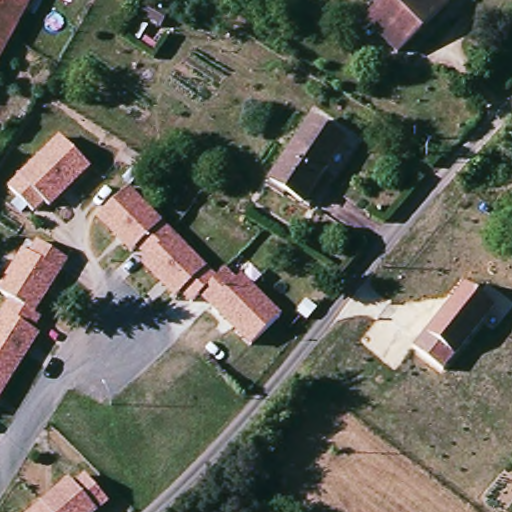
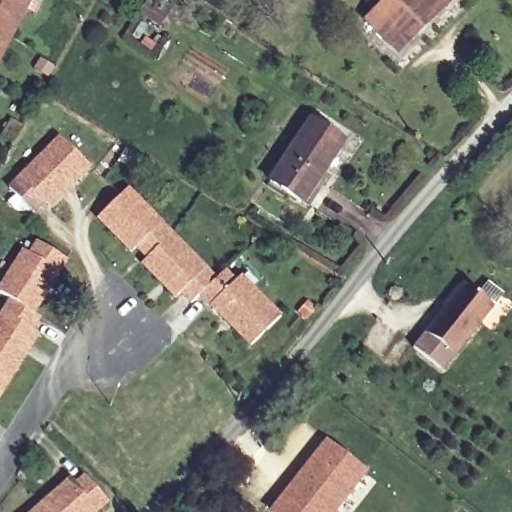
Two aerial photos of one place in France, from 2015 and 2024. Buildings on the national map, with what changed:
unchanged [(0,66),(0,0),(34,0),(0,66)]
unchanged [(368,21),(389,0),(460,0),(402,56),(368,21)]
unchanged [(277,179),(320,123),(350,145),(307,202),(277,179)]
unchanged [(56,137),(88,165),(46,210),(38,203),(31,210),(9,190),(56,137)]
unchanged [(132,252),(102,221),(133,189),(222,275),(230,268),(241,279),(247,272),(287,310),(257,343),(205,294),(200,300),(189,290),(182,297),(145,264),(153,256),(140,244),(132,252)]
unchanged [(0,290),(0,272),(15,247),(20,250),(32,233),(57,249),(25,305),(32,309),(25,320),(36,326),(0,394),(0,315),(10,295),(0,290)]
unchanged [(463,281),(495,306),(446,370),(412,346),(463,281)]
new [(367,471),(336,512),(268,512),(325,439),(367,471)]
unchanged [(80,487),(93,477),(112,501),(101,512),(41,512),(74,483),(80,487)]

